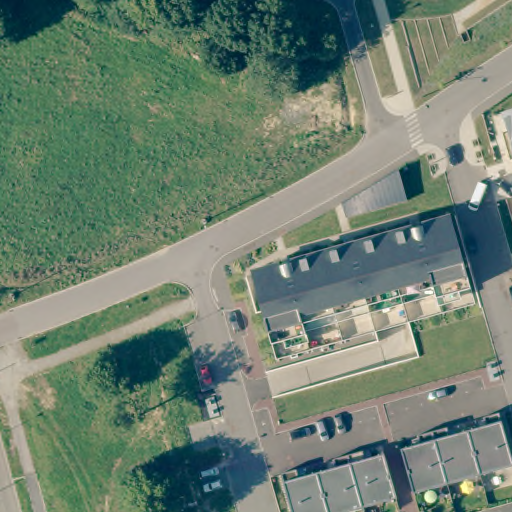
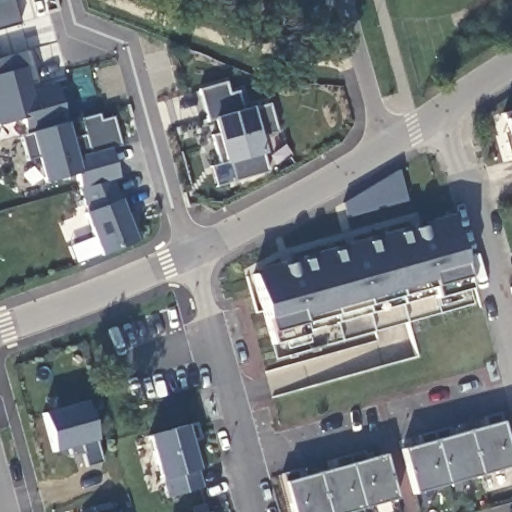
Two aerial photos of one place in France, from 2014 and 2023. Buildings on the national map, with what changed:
new [(0,1),(2,0),(14,0),(20,24),(0,29),(0,1)]
new [(32,91),(56,83),(69,123),(73,141),(87,136),(83,120),(100,115),(103,122),(114,119),(122,146),(111,148),(119,177),(114,179),(121,200),(126,215),(133,210),(144,241),(138,243),(101,256),(86,212),(76,176),(44,184),(29,135),(23,119),(0,125),(0,61),(29,52),(37,84),(31,85),(32,91)]
new [(260,135),(266,155),(271,173),(238,180),(233,163),(224,166),(210,119),(198,90),(226,82),(229,95),(239,92),(245,110),(253,108),(270,101),(278,131),(260,135)]
unchanged [(512,112),(512,159),(510,160),(503,134),(508,133),(502,115),(512,112)]
unchanged [(398,171),(407,201),(345,217),(343,204),(398,171)]
unchanged [(270,334),(263,312),(253,275),(452,219),(472,289),(307,335),(273,345),(270,334)]
new [(86,468),(82,455),(73,457),(71,449),(53,453),(41,414),(86,401),(96,441),(103,462),(86,468)]
unchanged [(421,445),(419,436),(433,432),(448,428),(450,436),(469,431),(487,426),(485,418),(500,414),(512,458),(512,467),(481,476),(448,485),(414,495),(402,450),(421,445)]
new [(168,498),(162,481),(159,481),(146,436),(184,426),(195,423),(200,441),(190,442),(197,472),(202,489),(168,498)]
unchanged [(297,470),(300,478),(318,473),(336,468),(334,460),(363,452),(366,460),(385,455),(397,500),(364,509),(351,512),(292,512),(282,475),(282,474),(297,470)]
new [(210,511),(210,512),(206,512),(210,511)]

